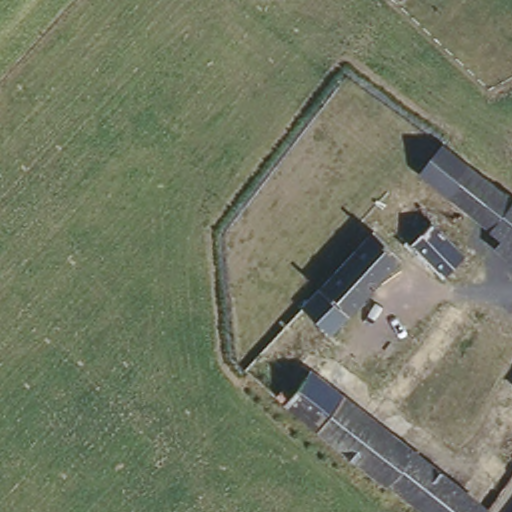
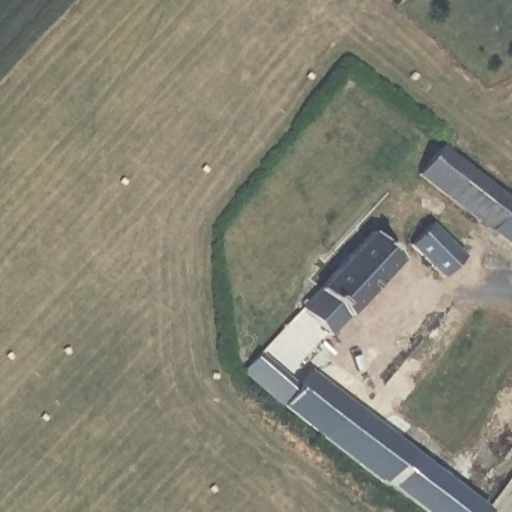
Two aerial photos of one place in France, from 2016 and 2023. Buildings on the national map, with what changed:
unchanged [(512,198),(512,244),(424,170),(429,162),(446,143),(512,198)]
unchanged [(431,220),(462,253),(441,271),(412,239),(431,220)]
unchanged [(401,254),(330,334),(303,309),(313,297),(373,228),(401,254)]
unchanged [(289,381),(311,357),(484,508),(480,512),(426,512),(384,475),(382,477),(276,383),(284,376),(289,381)]

